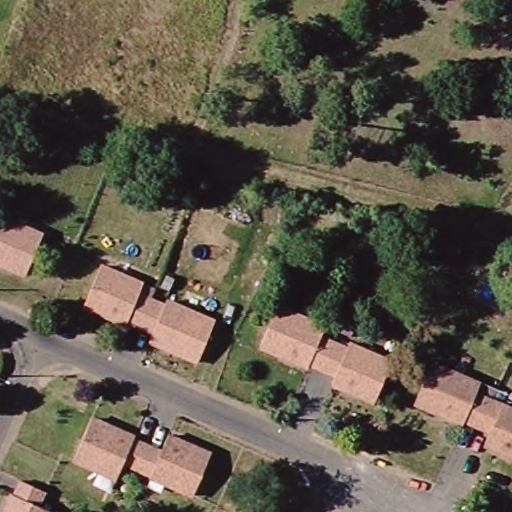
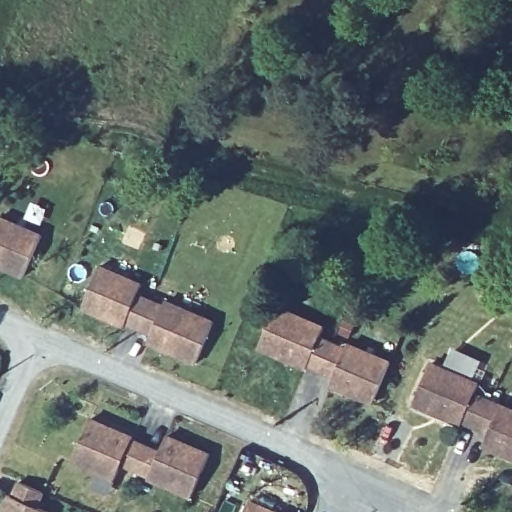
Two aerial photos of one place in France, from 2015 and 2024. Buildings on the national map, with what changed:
unchanged [(0,224),(4,214),(46,231),(27,273),(0,263),(0,224)]
unchanged [(142,290),(166,299),(170,296),(214,319),(198,358),(150,339),(152,331),(129,322),(127,325),(88,307),(105,266),(146,282),(142,290)]
unchanged [(339,378),(314,369),(311,373),(263,351),(279,312),(328,332),(325,340),(352,349),(356,345),(393,361),(378,403),(335,387),(339,378)]
unchanged [(467,426),(422,406),(439,364),(483,383),(485,393),(512,406),(512,456),(490,447),(494,433),(472,422),(467,426)]
unchanged [(128,459),(119,477),(80,456),(102,415),(141,433),(140,436),(165,448),(173,432),(217,451),(197,492),(128,459)]
unchanged [(20,491),(26,478),(49,487),(44,501),(56,506),(54,512),(7,512),(16,491),(20,491)]
unchanged [(278,512),(245,512),(250,500),(278,512)]

